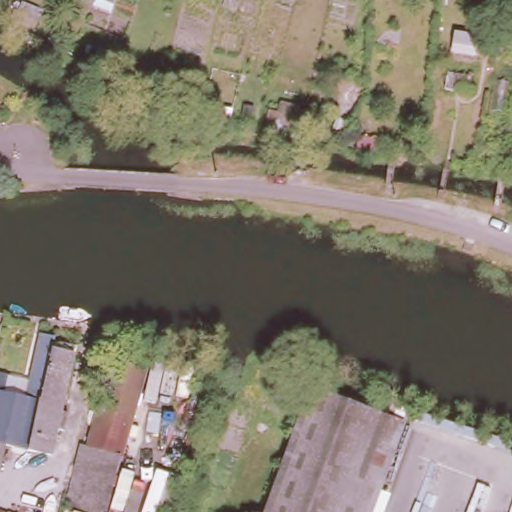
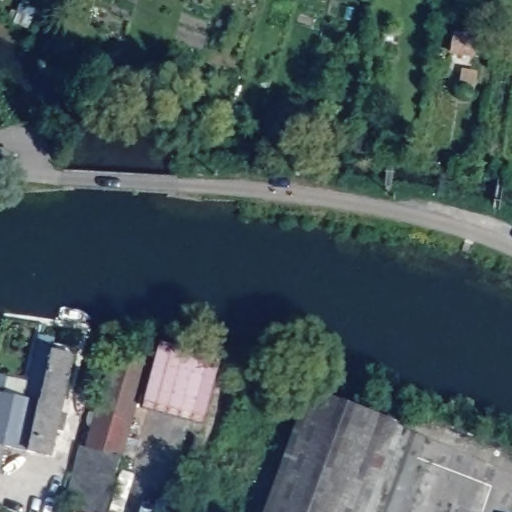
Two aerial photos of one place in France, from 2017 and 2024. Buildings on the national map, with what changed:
unchanged [(41,336),(55,339),(79,344),(67,404),(65,410),(71,411),(67,428),(61,427),(56,453),(30,447),(7,442),(2,468),(0,468),(0,390),(27,396),(41,336)]
new [(142,409),(159,345),(222,361),(202,426),(142,409)]
unchanged [(108,511),(70,502),(114,349),(152,356),(108,511)]
unchanged [(400,422),(369,512),(260,512),(302,388),(400,422)]

